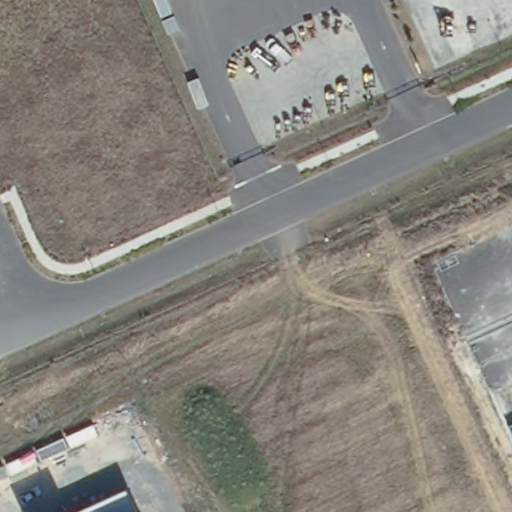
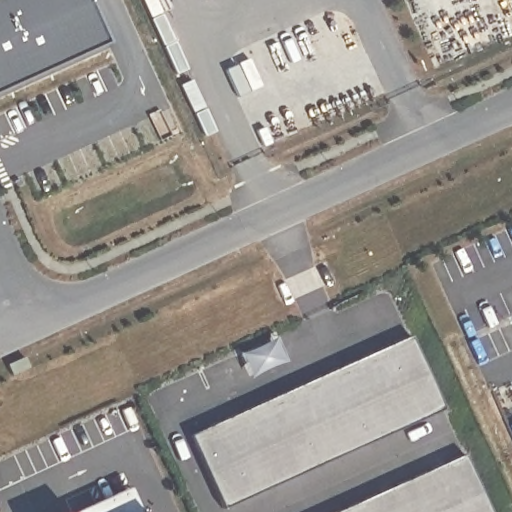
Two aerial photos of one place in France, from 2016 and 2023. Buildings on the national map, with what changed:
new [(88,0),(106,39),(0,87),(0,0),(88,0)]
new [(410,335),(442,407),(224,506),(192,434),(410,335)]
new [(512,439),(505,422),(512,418),(512,439)]
new [(465,454),(491,512),(335,512),(465,454)]
unchanged [(127,488),(140,512),(76,512),(127,488)]

